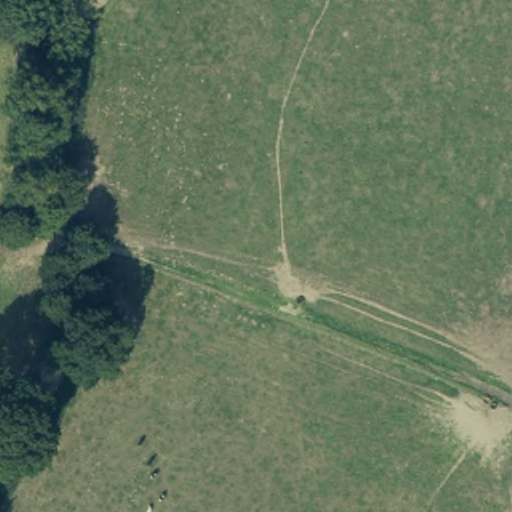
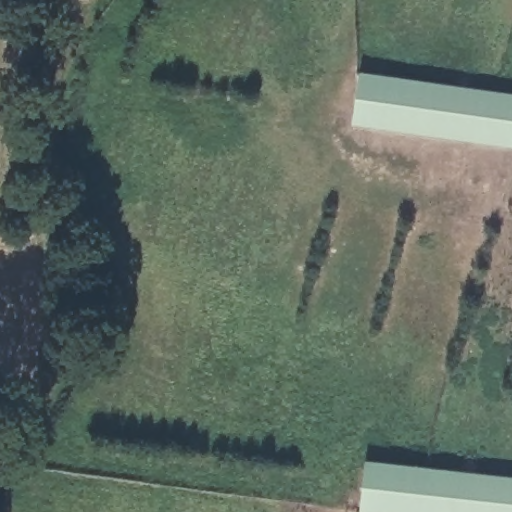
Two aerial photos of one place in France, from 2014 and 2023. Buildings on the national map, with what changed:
new [(360,73),(512,95),(512,149),(352,127),(360,73)]
new [(365,461),(512,478),(512,512),(360,512),(365,461)]

